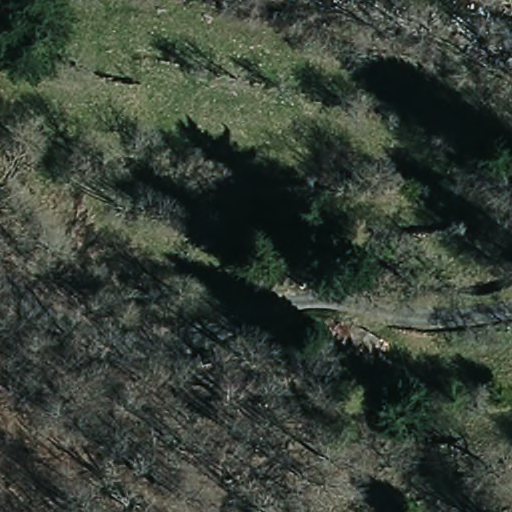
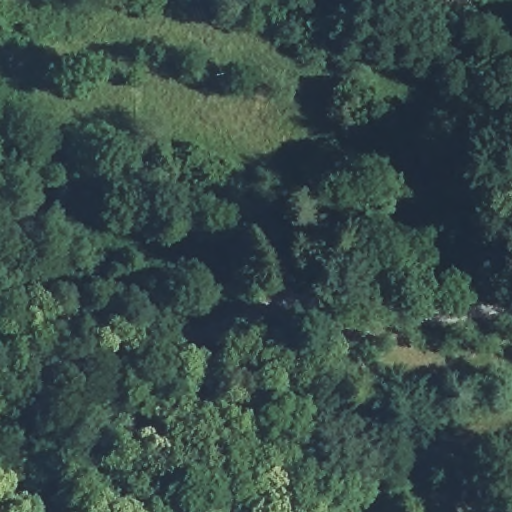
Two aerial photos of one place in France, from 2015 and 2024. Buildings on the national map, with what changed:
unchanged [(374,363),(327,338),(333,325),(350,333),(356,326),(384,345),(374,363)]

